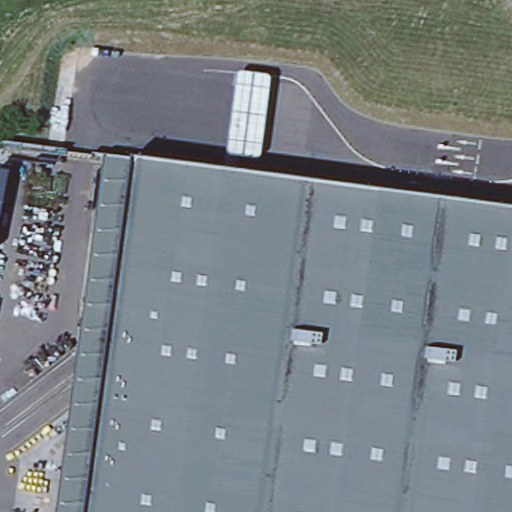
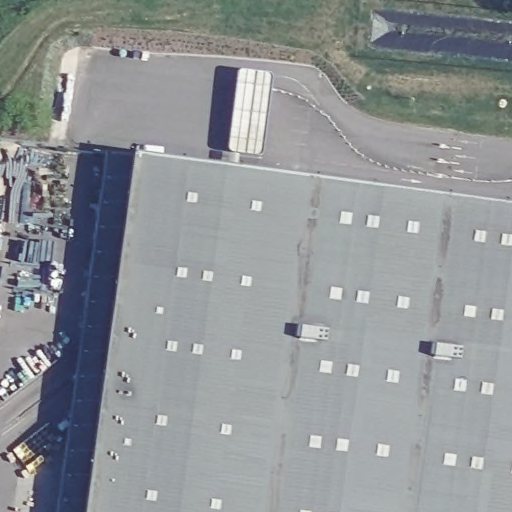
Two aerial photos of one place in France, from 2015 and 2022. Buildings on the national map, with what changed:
unchanged [(85,512),(57,512),(105,152),(133,155),(85,512)]
unchanged [(512,207),(512,512),(85,512),(133,155),(512,207)]
unchanged [(0,224),(0,166),(11,169),(0,224)]

